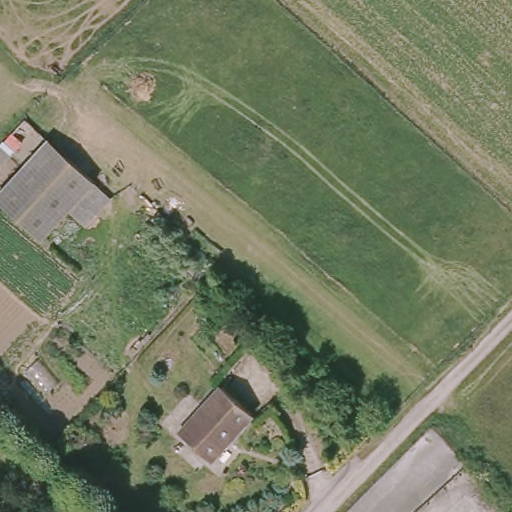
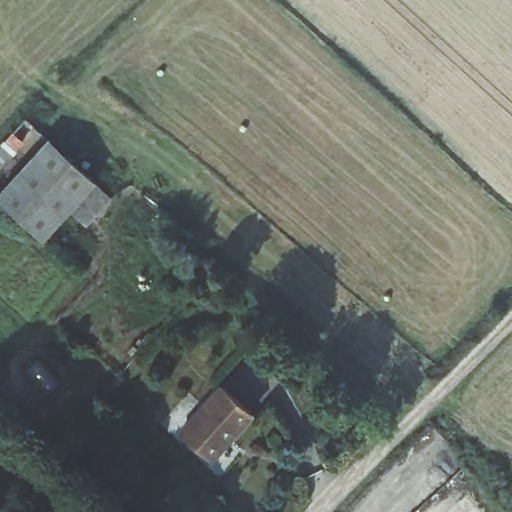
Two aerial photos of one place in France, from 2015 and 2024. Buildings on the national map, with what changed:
unchanged [(46,139),(88,179),(39,234),(0,200),(0,191),(46,139)]
unchanged [(220,384),(251,414),(209,457),(178,428),(220,384)]

